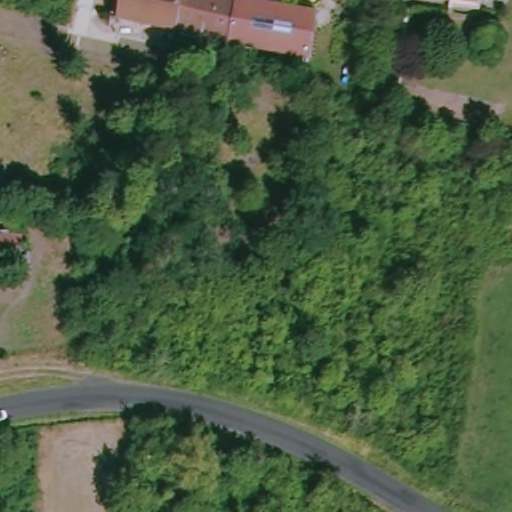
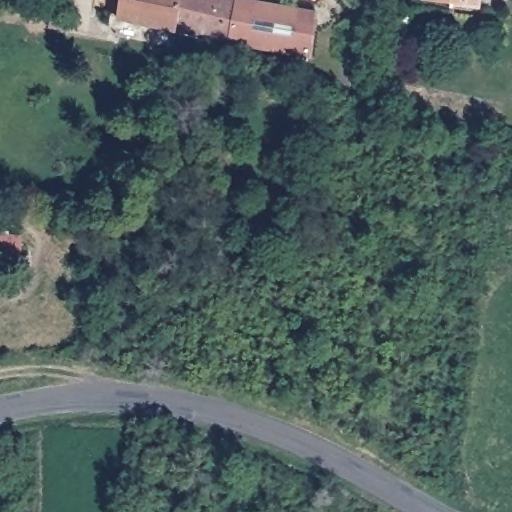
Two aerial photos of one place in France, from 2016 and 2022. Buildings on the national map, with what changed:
unchanged [(111,17),(115,0),(175,0),(170,27),(111,17)]
unchanged [(223,37),(170,27),(175,0),(231,0),(223,37)]
unchanged [(312,9),(305,51),(223,37),(231,0),(266,0),(312,9)]
unchanged [(448,0),(471,0),(471,3),(448,0)]
unchanged [(3,236),(17,237),(15,255),(25,255),(25,271),(9,268),(8,274),(0,272),(0,231),(3,231),(3,236)]

